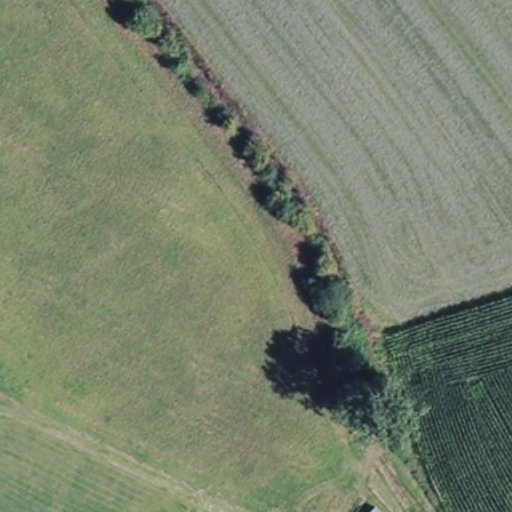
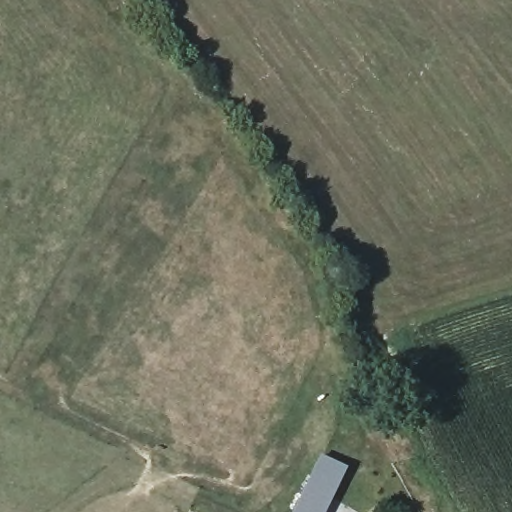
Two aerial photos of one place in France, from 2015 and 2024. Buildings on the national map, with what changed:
new [(323,459),(342,469),(321,512),(297,512),(323,459)]
new [(377,506),(382,512),(370,512),(377,506)]

